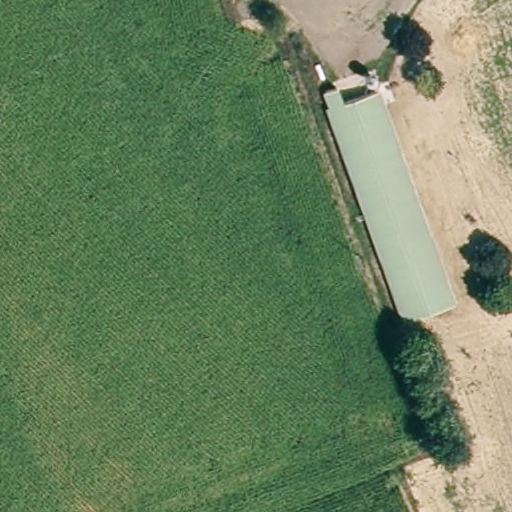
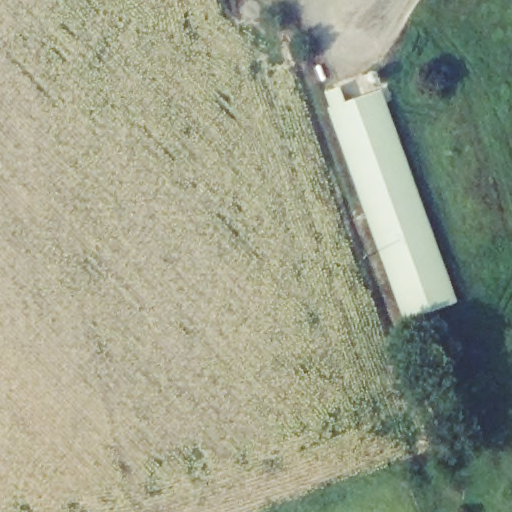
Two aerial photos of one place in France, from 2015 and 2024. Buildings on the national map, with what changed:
unchanged [(320,92),(337,86),(343,102),(371,89),(452,299),(408,316),(320,92)]

